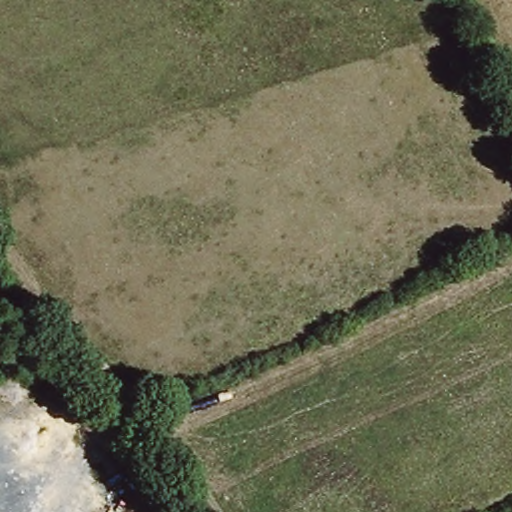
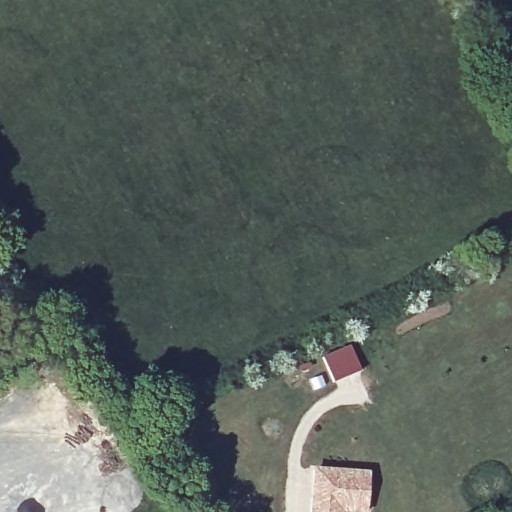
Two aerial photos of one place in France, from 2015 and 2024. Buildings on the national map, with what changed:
new [(350,344),(362,370),(333,382),(322,355),(350,344)]
new [(313,465),(370,470),(367,512),(309,512),(313,465)]

